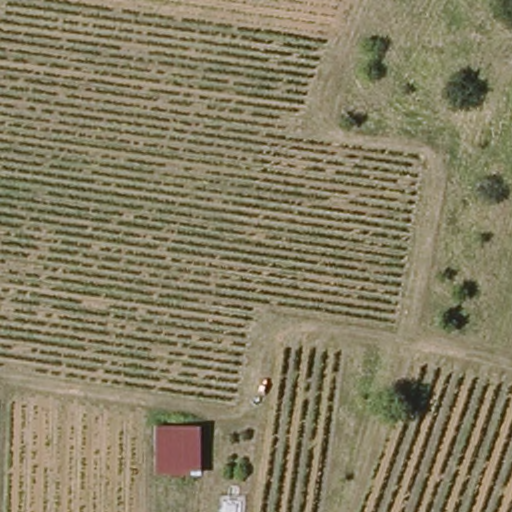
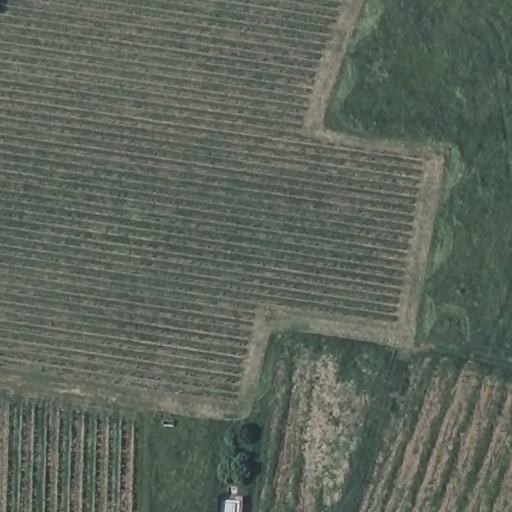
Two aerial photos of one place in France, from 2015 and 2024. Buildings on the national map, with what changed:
demolished [(160,424),(204,424),(204,477),(158,477),(160,424)]

